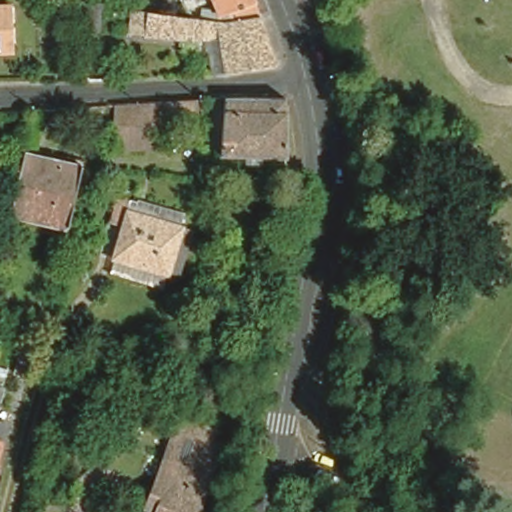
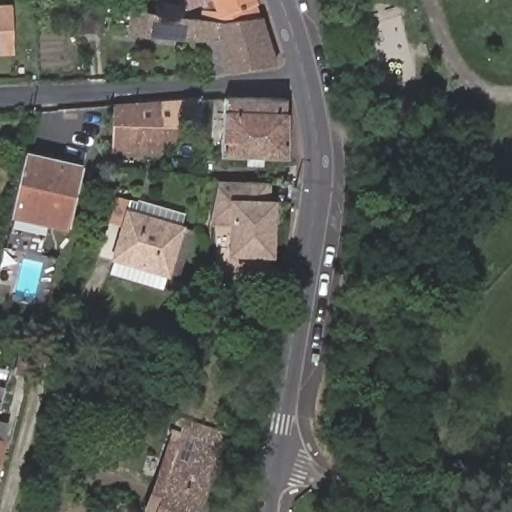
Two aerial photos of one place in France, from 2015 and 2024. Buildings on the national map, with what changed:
unchanged [(189,0),(213,0),(200,6),(198,1),(191,5),(190,3),(189,0)]
unchanged [(236,20),(202,15),(204,9),(218,10),(213,0),(252,0),(257,12),(236,20)]
unchanged [(0,5),(12,5),(13,44),(14,50),(0,51),(0,5)]
unchanged [(103,7),(100,32),(79,30),(83,5),(103,7)]
unchanged [(205,44),(205,37),(197,37),(195,37),(127,30),(130,6),(196,15),(202,15),(236,20),(257,12),(274,61),(221,69),(207,71),(205,44)]
unchanged [(283,101),(283,159),(222,157),(222,100),(283,101)]
unchanged [(205,101),(206,127),(183,129),(184,140),(172,140),(172,151),(113,155),(111,132),(117,107),(205,101)]
unchanged [(13,186),(20,155),(74,168),(62,228),(6,216),(13,186)]
new [(268,199),(275,200),(274,257),(228,256),(227,230),(209,230),(209,180),(270,182),(268,199)]
unchanged [(122,222),(107,219),(113,192),(117,192),(119,181),(135,185),(133,192),(185,204),(182,217),(181,222),(191,225),(183,259),(173,256),(171,266),(168,266),(165,279),(111,266),(114,254),(122,222)]
unchanged [(30,381),(14,375),(22,350),(40,357),(30,381)]
unchanged [(11,366),(0,362),(0,360),(2,353),(14,358),(11,366)]
unchanged [(9,373),(6,380),(0,378),(3,371),(9,373)]
unchanged [(0,415),(0,386),(10,390),(0,415)]
unchanged [(158,492),(180,434),(186,420),(231,438),(227,450),(206,503),(203,512),(151,512),(158,492)]
unchanged [(0,456),(0,421),(11,425),(0,456)]

